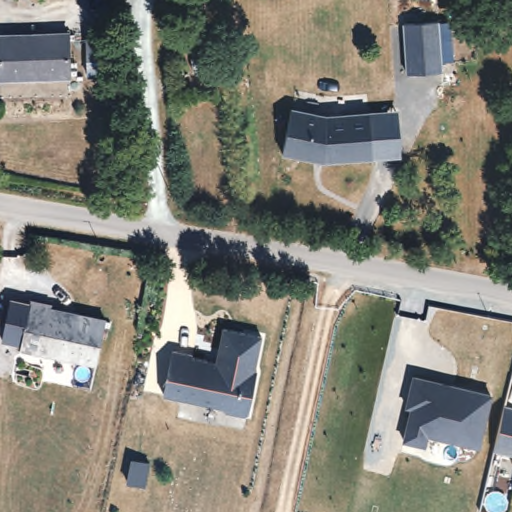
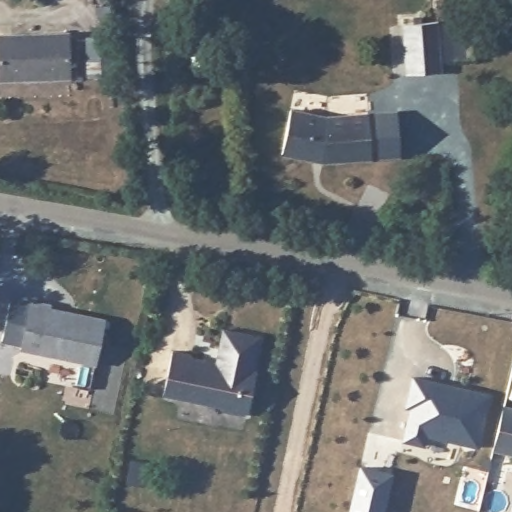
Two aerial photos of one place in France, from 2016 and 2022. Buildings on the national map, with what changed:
unchanged [(436,24),(440,73),(401,77),(397,28),(436,24)]
unchanged [(69,79),(0,84),(0,41),(65,35),(69,79)]
unchanged [(328,124),(363,120),(367,164),(319,168),(278,160),(289,117),(328,124)]
unchanged [(101,323),(92,369),(21,356),(30,307),(50,310),(49,315),(101,323)]
unchanged [(195,354),(219,359),(226,325),(264,333),(257,367),(259,368),(250,409),(246,412),(227,408),(225,404),(166,391),(175,347),(195,351),(195,354)]
unchanged [(451,388),(492,397),(480,449),(428,436),(426,447),(405,442),(412,410),(407,409),(414,379),(443,386),(451,388)]
unchanged [(512,405),(512,451),(495,447),(497,439),(505,403),(512,405)]
new [(392,473),(384,512),(347,512),(358,464),(392,473)]

